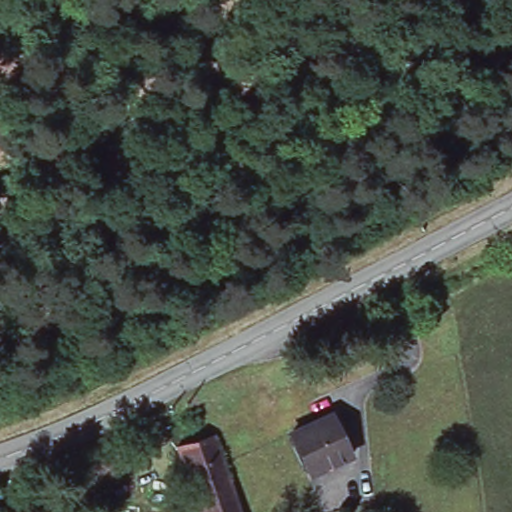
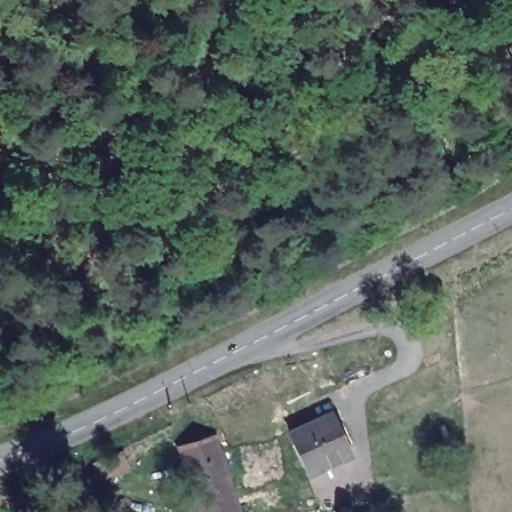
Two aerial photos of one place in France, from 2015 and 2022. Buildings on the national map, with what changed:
unchanged [(331,413),(351,454),(310,474),(290,432),(331,413)]
unchanged [(180,449),(216,437),(236,498),(199,509),(180,449)]
unchanged [(199,509),(236,498),(241,512),(200,512),(199,509)]

